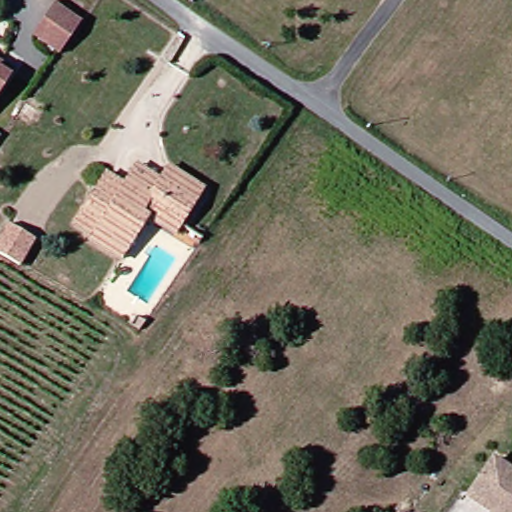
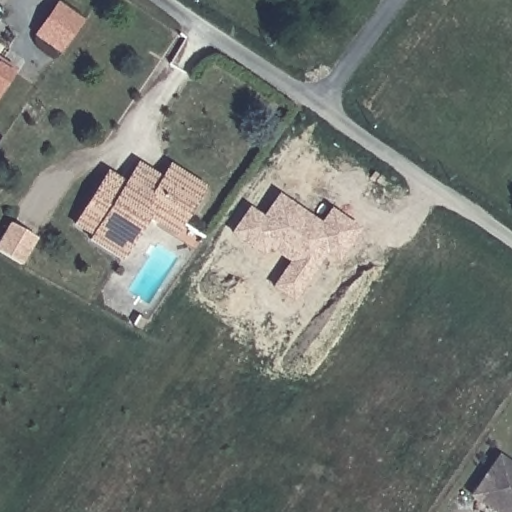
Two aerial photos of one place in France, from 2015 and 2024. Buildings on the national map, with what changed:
unchanged [(73,20),(51,50),(26,31),(46,2),(73,20)]
unchanged [(0,74),(1,74),(0,76),(0,74)]
unchanged [(141,216),(115,259),(84,239),(87,234),(70,223),(101,173),(119,184),(131,165),(145,174),(154,180),(158,174),(165,164),(200,187),(193,198),(176,224),(170,235),(151,223),(141,216)]
new [(271,288),(288,263),(267,249),(263,255),(230,234),(248,208),(262,217),(277,194),(319,224),(329,209),(359,229),(338,263),(326,255),(294,302),(271,288)]
unchanged [(34,252),(18,278),(0,267),(0,246),(7,235),(34,252)]
unchanged [(126,344),(134,332),(146,339),(138,351),(126,344)]
unchanged [(465,496),(492,458),(512,472),(512,512),(488,512),(465,496)]

